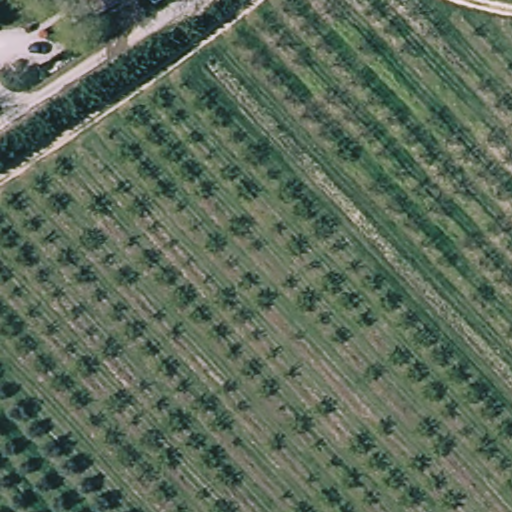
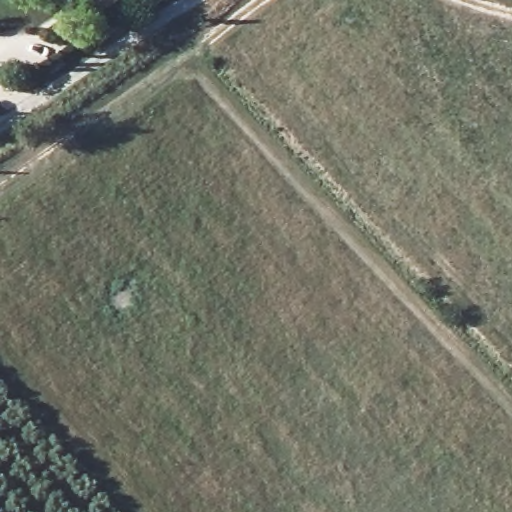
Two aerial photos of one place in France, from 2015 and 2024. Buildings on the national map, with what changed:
unchanged [(82,0),(114,0),(96,15),(82,0)]

